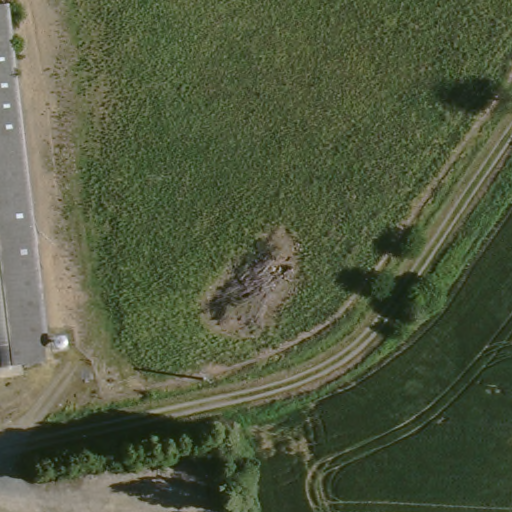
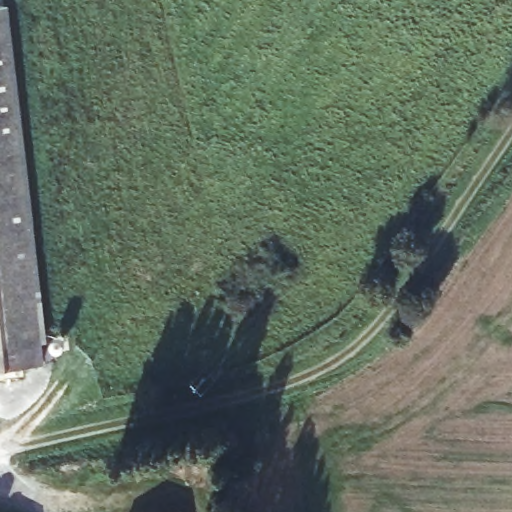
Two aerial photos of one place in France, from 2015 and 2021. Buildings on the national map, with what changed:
unchanged [(0,370),(0,20),(47,363),(0,370)]

